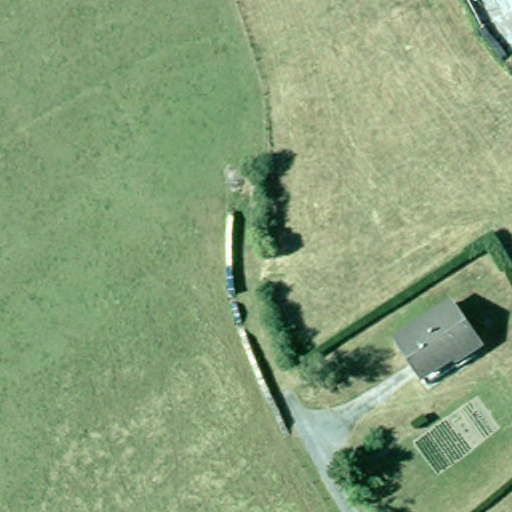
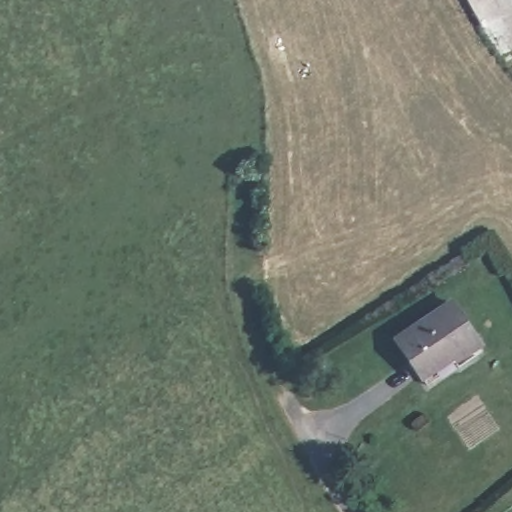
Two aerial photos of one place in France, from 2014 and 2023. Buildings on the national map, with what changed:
unchanged [(456,365),(460,372),(431,391),(398,341),(452,306),(481,349),(456,365)]

